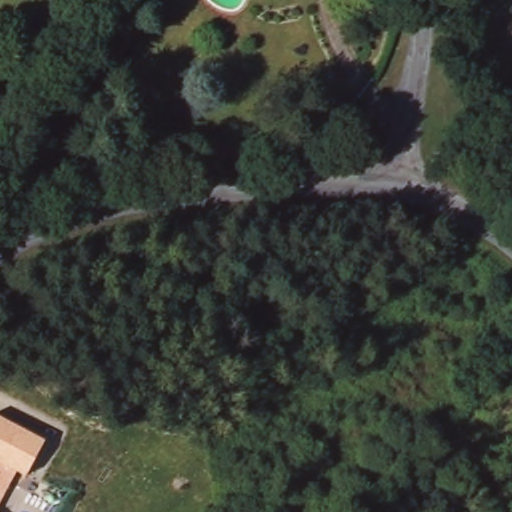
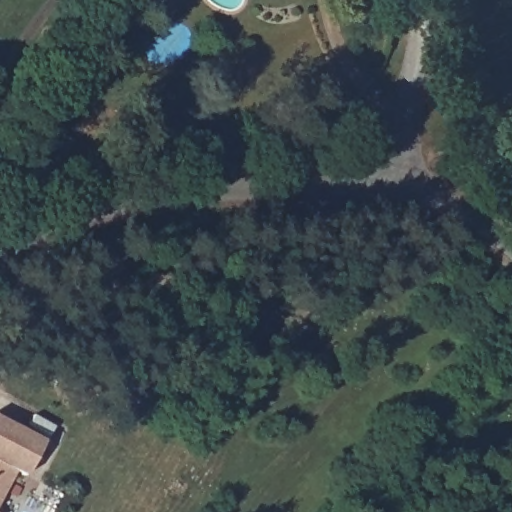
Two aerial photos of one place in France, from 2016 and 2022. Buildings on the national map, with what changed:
unchanged [(15,474),(0,465),(0,416),(45,441),(24,478),(15,474)]
unchanged [(15,474),(0,501),(0,465),(15,474)]

